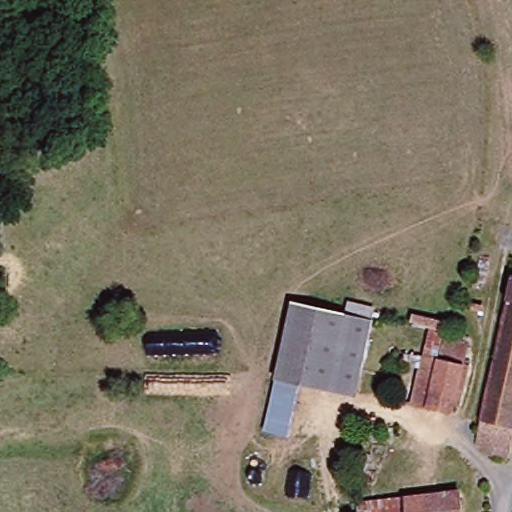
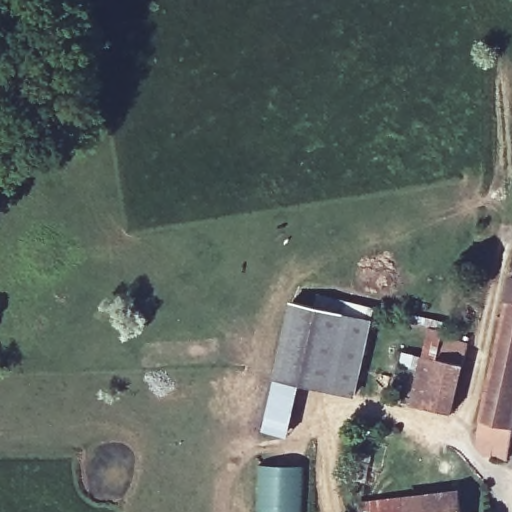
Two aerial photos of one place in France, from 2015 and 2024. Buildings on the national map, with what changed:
unchanged [(512,438),(507,459),(470,451),(512,274),(512,438)]
unchanged [(348,401),(270,378),(291,306),(367,327),(348,401)]
unchanged [(408,406),(418,373),(402,367),(403,357),(419,357),(425,331),(409,324),(412,312),(446,322),(441,339),(468,347),(449,419),(408,406)]
unchanged [(301,390),(292,441),(262,432),(270,383),(301,390)]
new [(259,464),(305,465),(303,512),(258,512),(259,464)]
unchanged [(356,502),(458,490),(461,512),(356,512),(356,502)]

